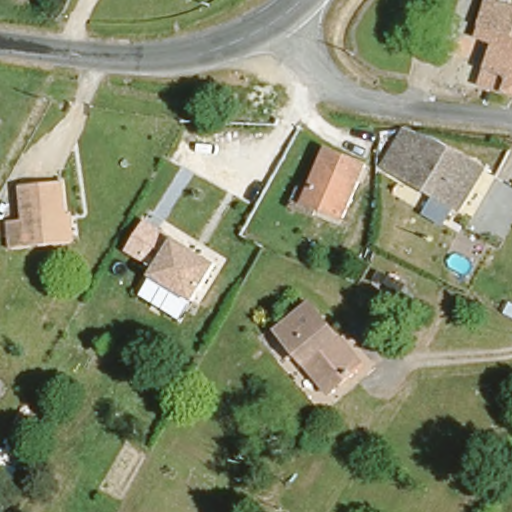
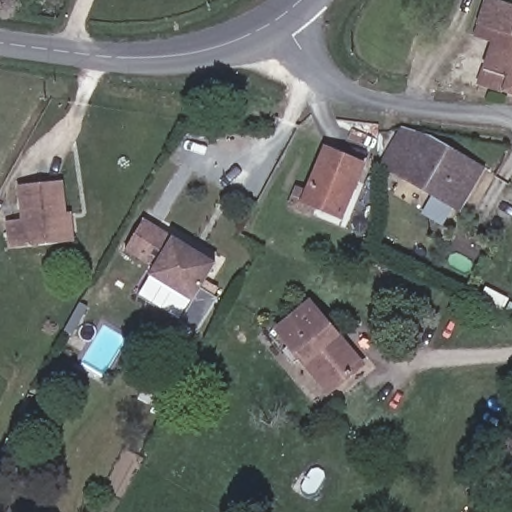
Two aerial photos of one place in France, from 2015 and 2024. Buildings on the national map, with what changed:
unchanged [(472,87),(487,45),(474,41),(487,1),(512,8),(512,96),(472,87)]
unchanged [(453,211),(382,172),(406,130),(476,168),(453,211)]
unchanged [(298,200),(319,147),(320,148),(361,163),(340,216),(339,216),(298,200)]
unchanged [(72,245),(58,246),(4,251),(1,224),(19,222),(14,189),(58,184),(61,217),(69,217),(72,245)]
unchanged [(174,238),(218,264),(194,301),(152,275),(174,238)]
unchanged [(332,334),(328,338),(359,371),(332,395),(271,328),(301,301),(332,334)]

